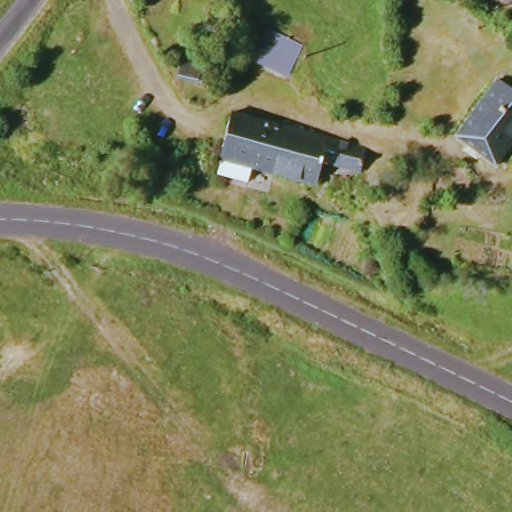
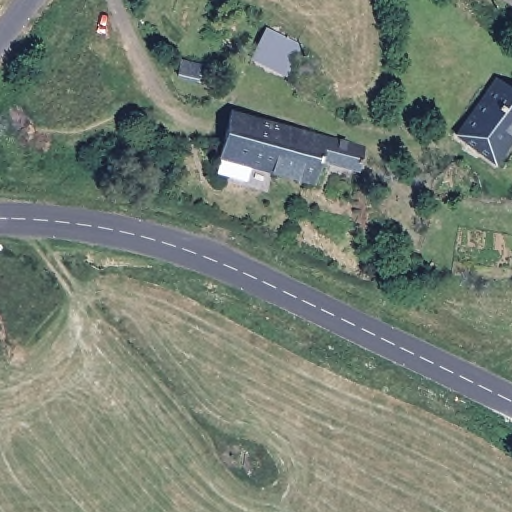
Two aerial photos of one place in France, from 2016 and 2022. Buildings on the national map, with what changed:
unchanged [(287,76),(250,60),(257,33),(295,50),(287,76)]
unchanged [(174,59),(187,66),(181,85),(167,81),(174,59)]
unchanged [(489,77),(512,91),(512,130),(495,160),(453,138),(489,77)]
unchanged [(214,180),(217,163),(214,162),(218,144),(224,118),(321,138),(364,145),(359,167),(317,159),(312,185),(247,170),(244,187),(214,180)]

